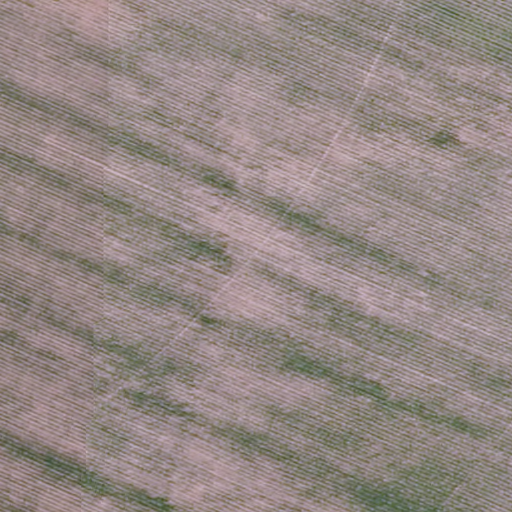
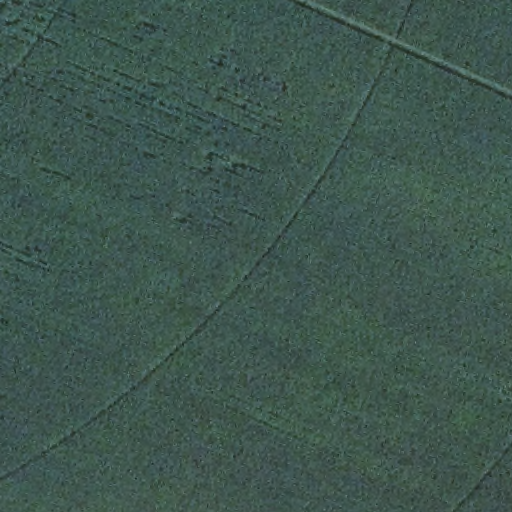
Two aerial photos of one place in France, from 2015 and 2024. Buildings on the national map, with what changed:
[]

